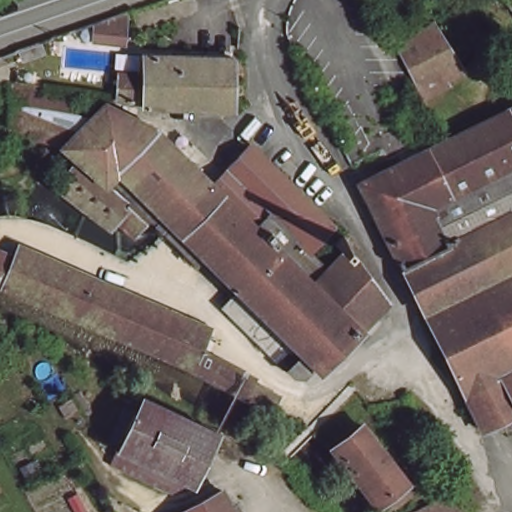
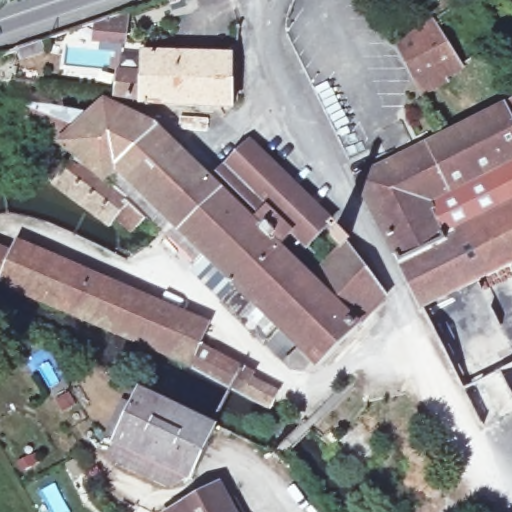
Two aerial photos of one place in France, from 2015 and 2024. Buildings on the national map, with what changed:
unchanged [(90,37),(89,19),(131,6),(126,41),(90,37)]
unchanged [(446,81),(448,84),(423,95),(398,45),(434,22),(464,69),(446,81)]
unchanged [(171,106),(140,106),(116,100),(116,98),(120,75),(145,75),(146,55),(234,55),(233,107),(171,106)]
unchanged [(289,371),(269,353),(227,310),(226,309),(219,302),(224,297),(211,283),(206,287),(196,296),(174,271),(180,266),(188,260),(162,237),(137,215),(131,221),(123,229),(113,221),(108,227),(83,209),(52,187),(45,181),(60,162),(61,161),(40,146),(46,139),(44,138),(13,128),(6,126),(16,81),(101,95),(103,96),(111,97),(102,118),(124,115),(156,128),(215,183),(229,170),(225,165),(250,141),(321,210),(331,221),(304,248),(289,234),(274,249),(309,283),(339,251),(328,239),(339,229),(349,239),(344,244),(346,246),(364,270),(384,297),(382,298),(364,319),(359,324),(348,334),(319,362),(316,365),(311,361),(299,372),(289,371)]
unchanged [(358,175),(512,110),(512,423),(476,437),(358,175)]
unchanged [(12,255),(19,241),(138,292),(151,297),(211,322),(198,347),(236,366),(255,375),(253,379),(282,392),(274,406),(242,391),(185,363),(0,285),(0,250),(12,255)]
unchanged [(141,391),(217,428),(192,479),(185,476),(167,486),(108,458),(116,443),(141,391)]
demolished [(359,423),(401,479),(398,481),(406,491),(378,510),(329,445),(359,423)]
unchanged [(215,490),(227,512),(174,512),(215,490)]

